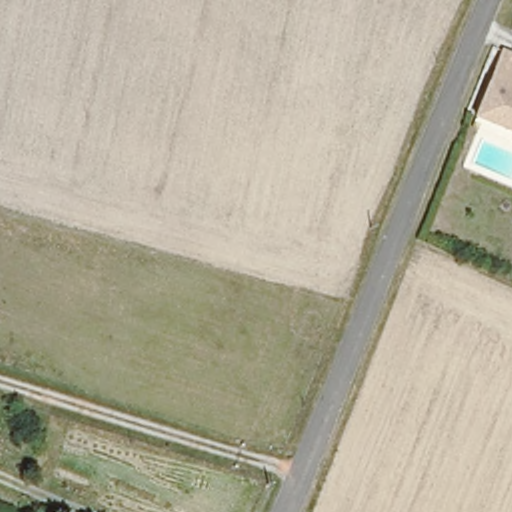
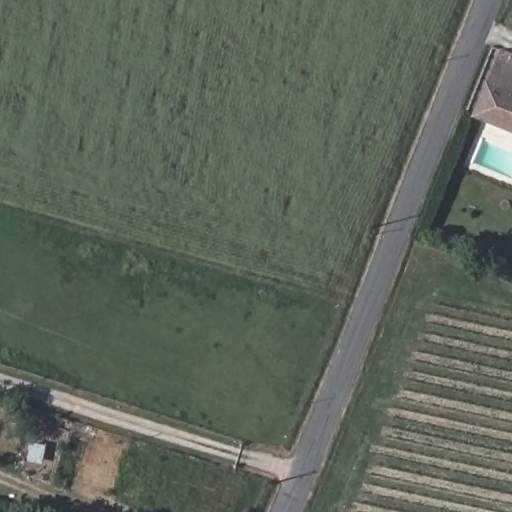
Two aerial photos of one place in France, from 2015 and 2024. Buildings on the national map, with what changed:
unchanged [(502,51),(512,54),(512,131),(475,115),(502,51)]

